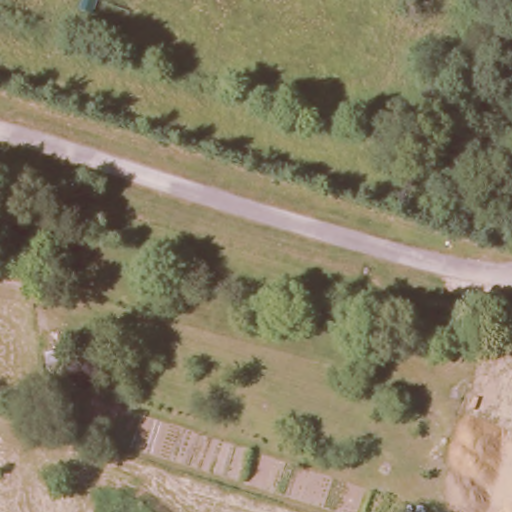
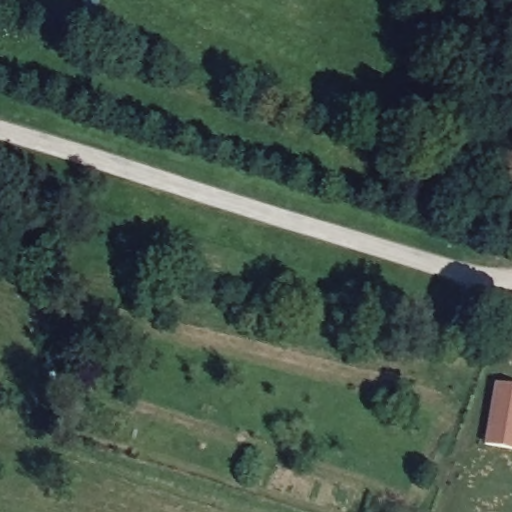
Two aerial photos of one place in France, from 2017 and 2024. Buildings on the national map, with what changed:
unchanged [(45,356),(55,354),(58,368),(48,369),(45,356)]
new [(493,384),(512,388),(512,452),(482,447),(493,384)]

